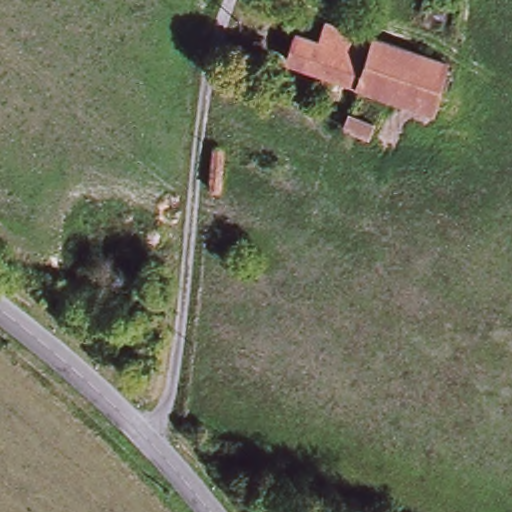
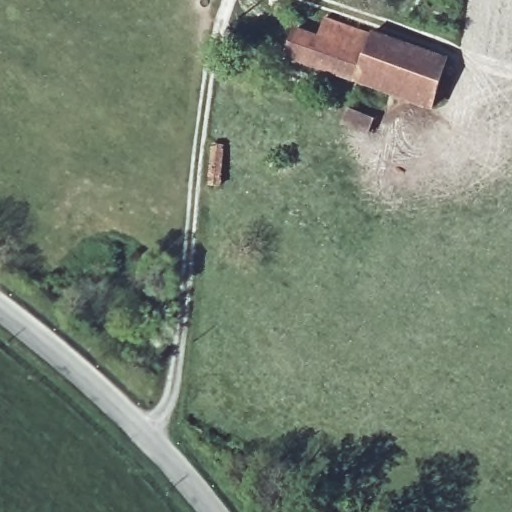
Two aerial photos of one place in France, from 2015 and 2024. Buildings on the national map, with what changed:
unchanged [(325,41),(332,24),(376,40),(377,37),(455,67),(436,114),(289,58),(300,31),(325,41)]
unchanged [(371,117),(370,120),(364,133),(338,121),(345,106),(371,117)]
unchanged [(222,140),(215,182),(208,181),(214,140),(222,140)]

